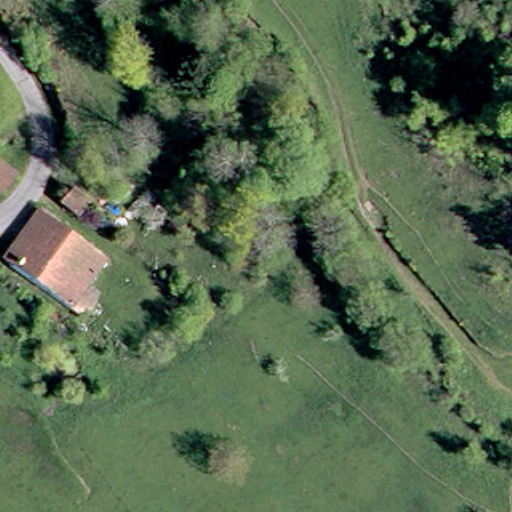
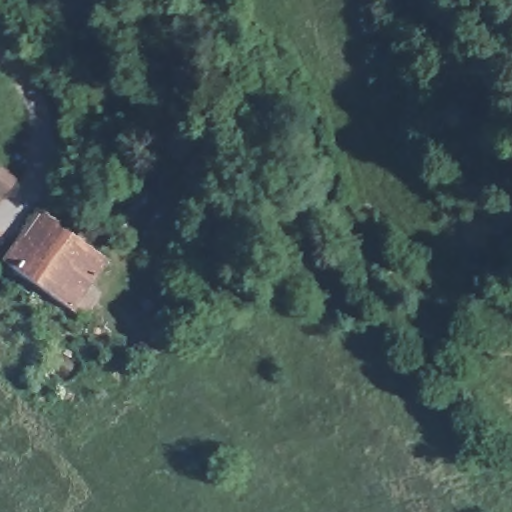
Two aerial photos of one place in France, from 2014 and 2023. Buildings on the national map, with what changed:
unchanged [(0,159),(13,170),(0,186),(0,159)]
unchanged [(77,187),(89,196),(80,208),(64,197),(73,184),(77,187)]
unchanged [(67,305),(50,293),(0,260),(35,209),(101,254),(67,305)]

